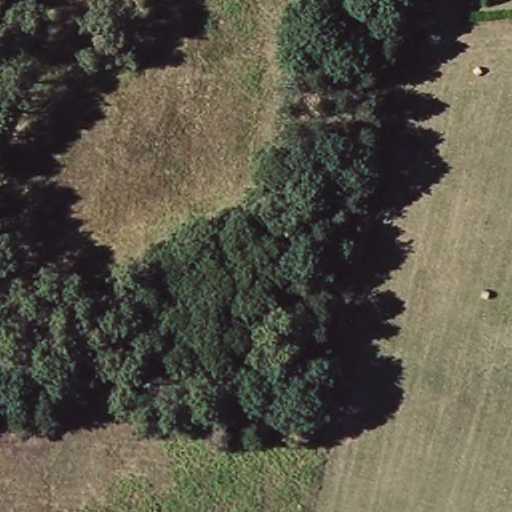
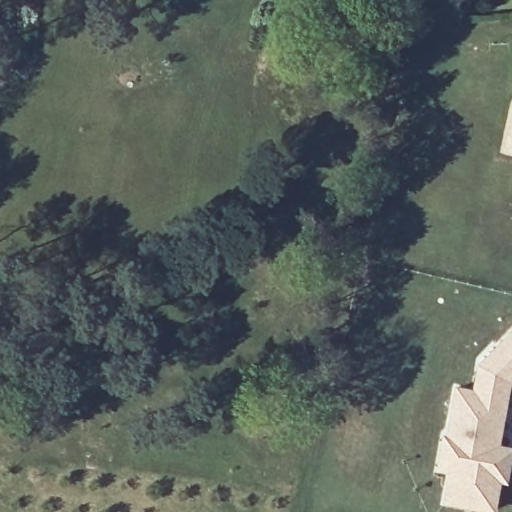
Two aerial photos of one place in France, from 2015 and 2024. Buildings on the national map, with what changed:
new [(512,109),(512,153),(503,151),(512,109)]
new [(497,445),(512,449),(507,480),(500,479),(495,510),(446,502),(451,472),(438,468),(443,437),(449,438),(457,388),(476,392),(480,365),(512,332),(512,377),(510,380),(497,445)]

